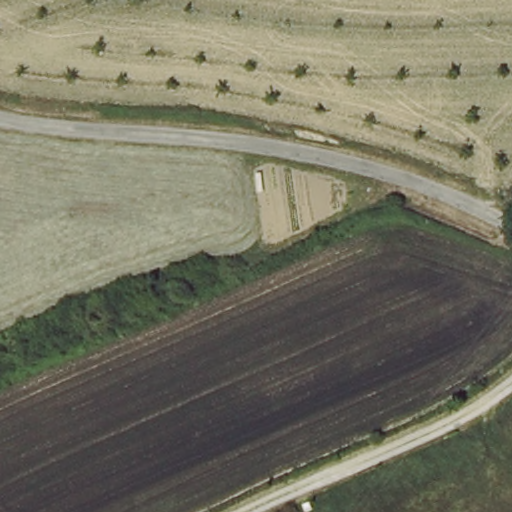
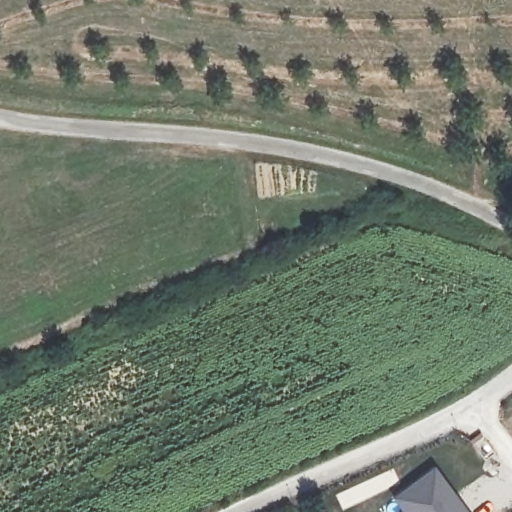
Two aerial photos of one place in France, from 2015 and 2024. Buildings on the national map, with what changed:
new [(402,511),(392,496),(433,465),(466,512),(400,512),(402,511)]

